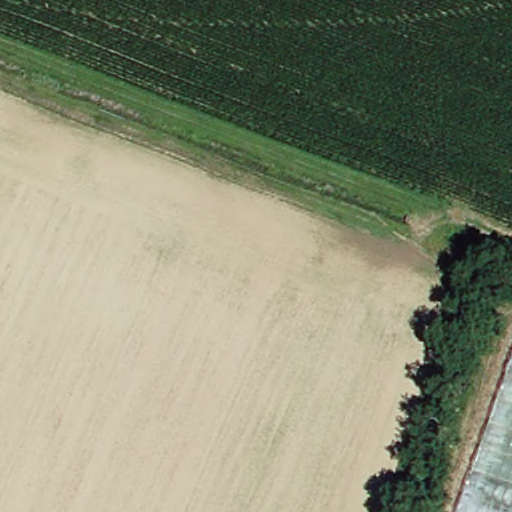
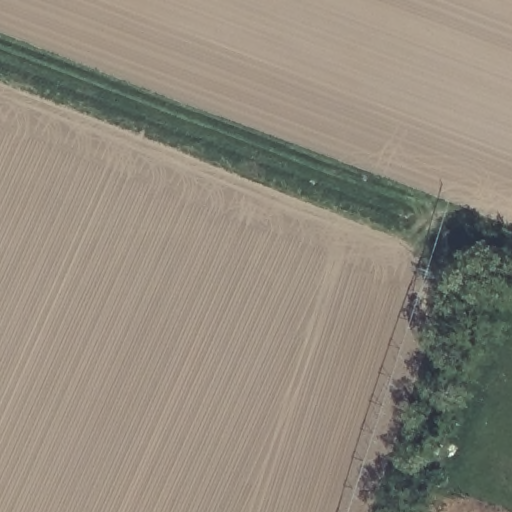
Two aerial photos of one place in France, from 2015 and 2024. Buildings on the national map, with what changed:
demolished [(512,335),(512,512),(447,512),(512,335)]

